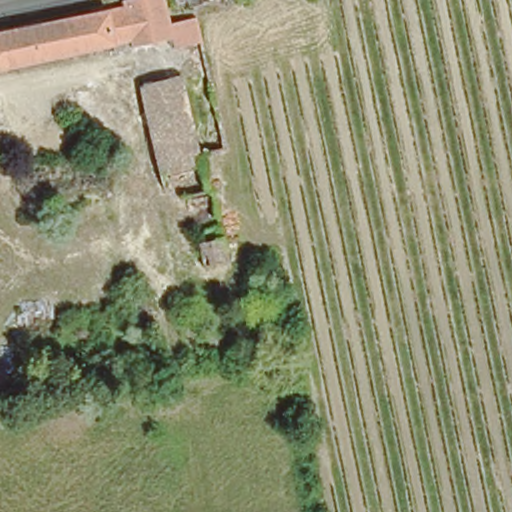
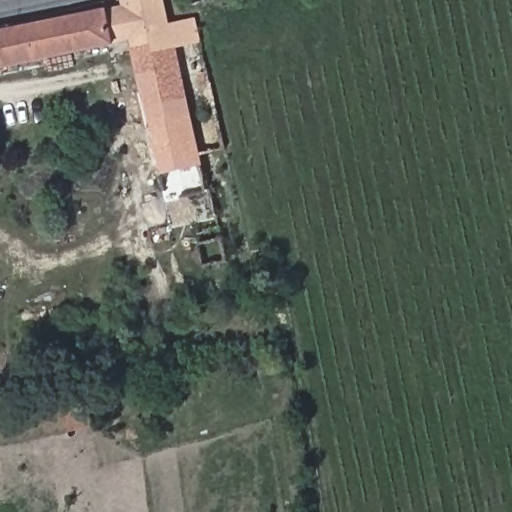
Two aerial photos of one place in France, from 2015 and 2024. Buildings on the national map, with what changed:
unchanged [(120,1),(122,0),(213,0),(213,3),(189,7),(194,26),(197,35),(176,36),(129,49),(120,1)]
unchanged [(112,44),(0,70),(0,28),(108,10),(112,44)]
new [(176,36),(197,35),(194,26),(192,20),(195,19),(201,42),(177,48),(180,75),(140,85),(129,49),(176,36)]
unchanged [(197,138),(220,131),(225,150),(160,172),(135,86),(180,75),(197,138)]
unchanged [(230,258),(199,265),(192,237),(223,229),(229,250),(230,258)]

